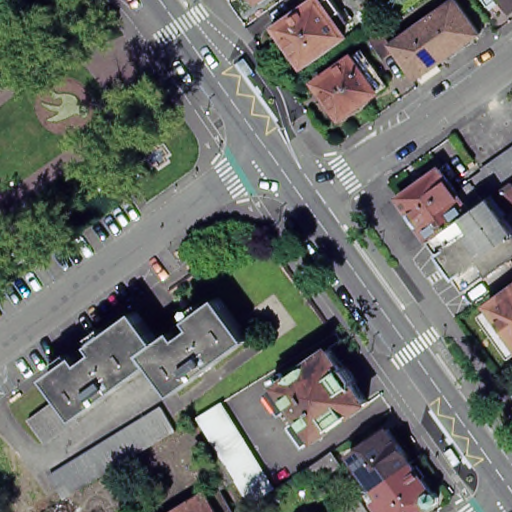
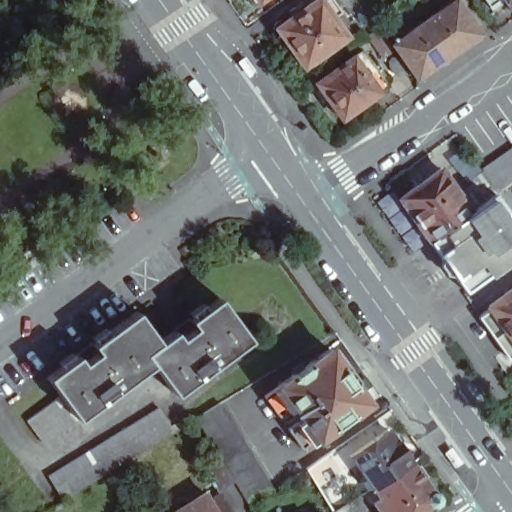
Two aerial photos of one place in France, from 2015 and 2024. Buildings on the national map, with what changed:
unchanged [(260,0),(268,0),(266,1),(260,0)]
unchanged [(313,4),(316,7),(325,0),(343,27),(335,34),(340,40),(298,70),(278,40),(280,26),(313,4)]
unchanged [(458,0),(462,0),(485,33),(421,79),(400,49),(388,58),(371,35),(384,26),(396,44),(458,0)]
unchanged [(476,0),(495,0),(512,0),(512,12),(506,16),(496,1),(483,10),(476,0)]
unchanged [(345,118),(340,122),(332,120),(329,115),(330,112),(311,87),(347,61),(356,55),(381,90),(372,96),(345,115),(345,118)]
unchanged [(472,185),(468,180),(482,170),(481,169),(512,147),(512,180),(497,190),(497,192),(494,195),(470,211),(430,240),(399,198),(440,169),(458,195),(472,185)]
unchanged [(494,195),(497,192),(512,181),(512,209),(503,216),(512,228),(512,257),(465,290),(430,240),(470,211),(494,195)]
unchanged [(136,310),(158,341),(218,296),(250,338),(174,393),(151,363),(76,418),(60,396),(46,376),(136,310)]
unchanged [(498,309),(500,307),(498,305),(512,296),(512,350),(488,316),(498,309)]
unchanged [(291,375),(292,375),(292,373),(291,371),(302,363),(304,365),(305,365),(306,365),(329,348),(367,401),(317,438),(316,437),(301,448),(287,428),(302,418),(293,405),(278,415),(264,396),(291,375)]
unchanged [(76,418),(42,443),(26,420),(60,396),(76,418)]
unchanged [(204,463),(218,455),(198,423),(195,418),(220,403),(273,490),(248,504),(233,480),(220,488),(204,463)]
unchanged [(48,476),(160,408),(173,431),(62,499),(48,476)]
unchanged [(350,455),(387,430),(411,463),(390,477),(373,488),(372,487),(350,455)]
unchanged [(340,466),(316,482),(306,468),(330,451),(331,453),(340,466)]
unchanged [(432,491),(435,492),(438,496),(437,501),(433,505),(430,504),(420,511),(420,512),(379,512),(372,502),(380,497),(373,488),(390,477),(411,463),(432,491)]
unchanged [(205,493),(209,499),(217,494),(222,495),(232,512),(175,512),(205,493)]
unchanged [(356,498),(359,496),(368,512),(334,512),(356,498)]

